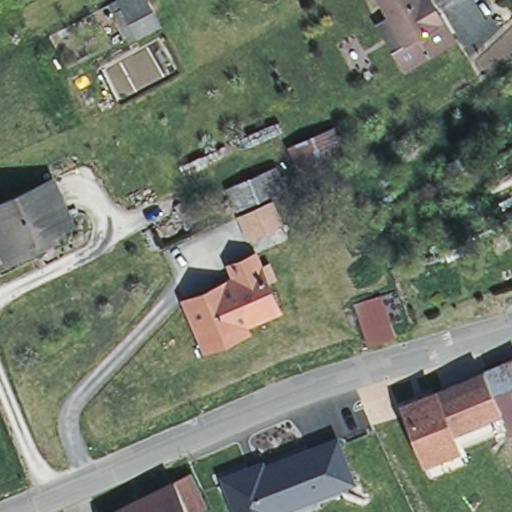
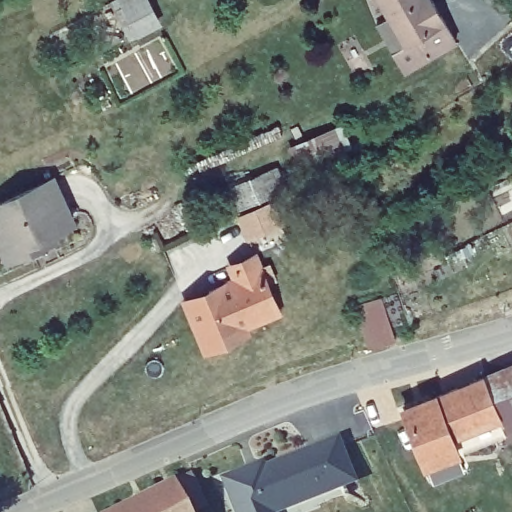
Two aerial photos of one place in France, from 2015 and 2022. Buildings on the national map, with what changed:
unchanged [(138,24),(126,1),(125,0),(148,0),(156,15),(138,24)]
unchanged [(388,5),(385,0),(438,0),(456,30),(406,61),(377,12),(388,5)]
unchanged [(287,148),(300,174),(230,205),(221,180),(287,148)]
unchanged [(12,248),(2,252),(0,249),(0,195),(48,173),(67,214),(45,224),(48,231),(37,236),(12,248)]
unchanged [(195,317),(187,297),(184,290),(208,280),(236,268),(230,253),(254,243),(278,298),(242,314),(246,321),(240,324),(212,336),(205,339),(195,317)]
unchanged [(377,284),(392,327),(365,335),(350,294),(377,284)]
unchanged [(512,364),(512,436),(508,438),(499,416),(482,375),(512,364)]
unchanged [(432,462),(407,406),(482,375),(499,416),(450,435),(457,451),(432,462)]
unchanged [(262,459),(266,463),(340,435),(358,482),(279,512),(236,512),(223,474),(262,459)]
unchanged [(196,512),(105,512),(101,504),(175,466),(196,512)]

